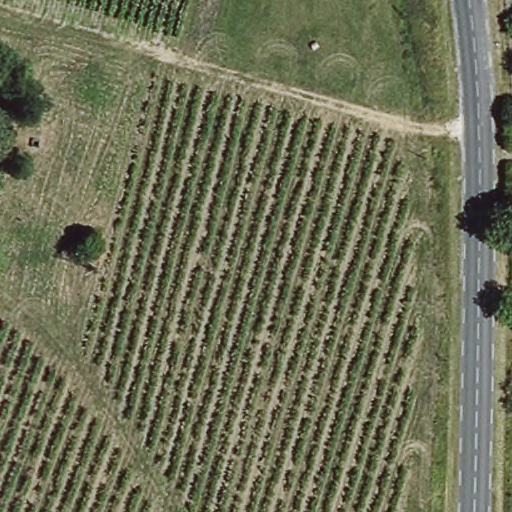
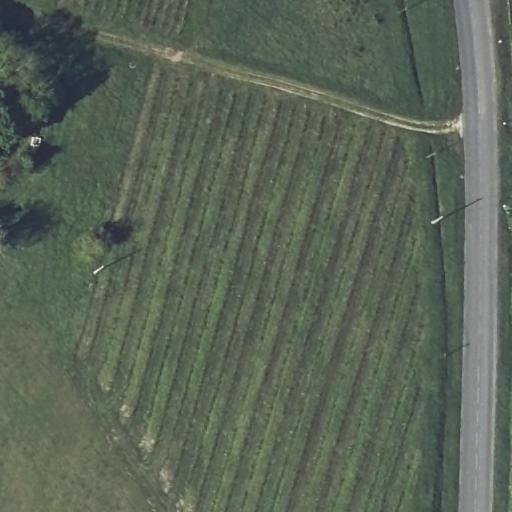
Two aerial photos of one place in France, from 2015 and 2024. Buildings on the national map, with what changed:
unchanged [(0,113),(0,71),(30,81),(52,88),(41,125),(19,119),(0,113)]

